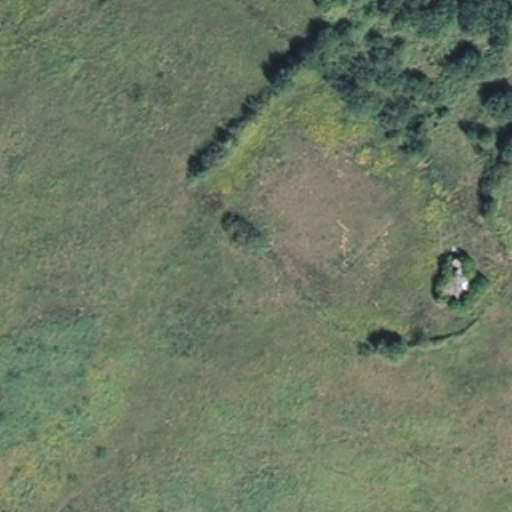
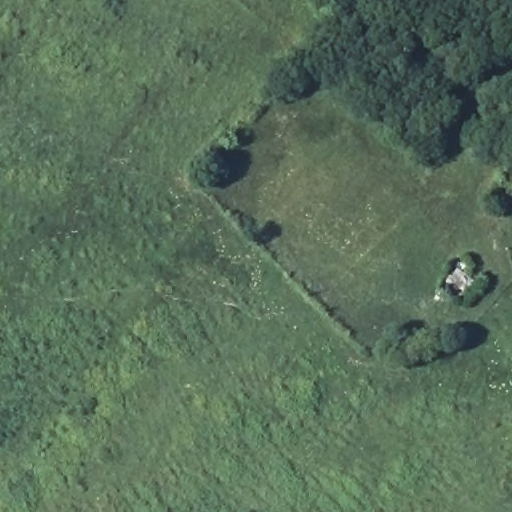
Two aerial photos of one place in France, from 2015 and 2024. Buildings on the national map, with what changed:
unchanged [(461,304),(439,288),(456,266),(479,281),(461,304)]

